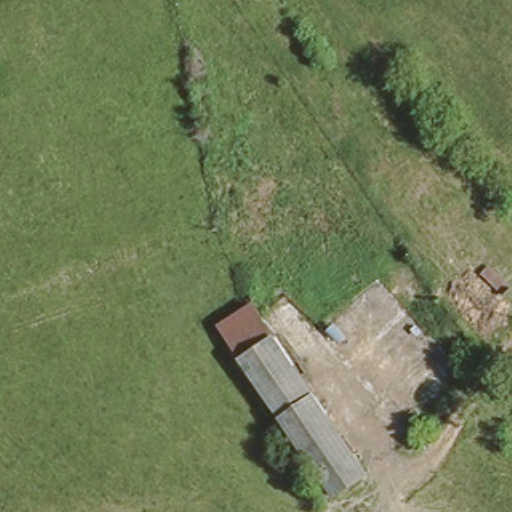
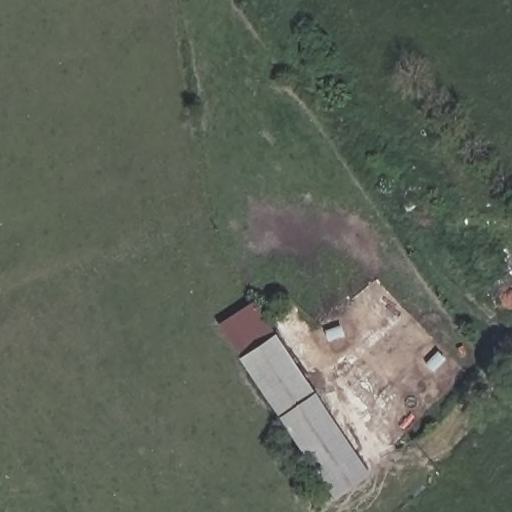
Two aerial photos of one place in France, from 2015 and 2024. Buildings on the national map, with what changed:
unchanged [(257,294),(281,330),(372,466),(332,492),(241,351),(218,318),(257,294)]

